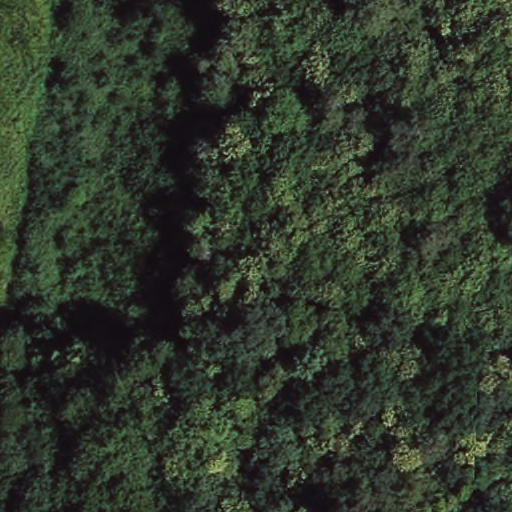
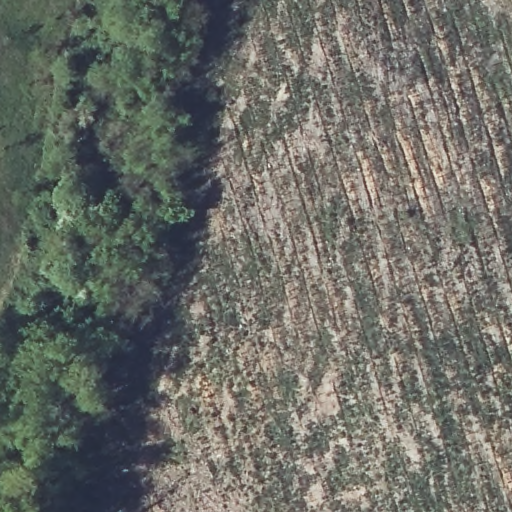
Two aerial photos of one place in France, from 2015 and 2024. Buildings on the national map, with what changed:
[]

